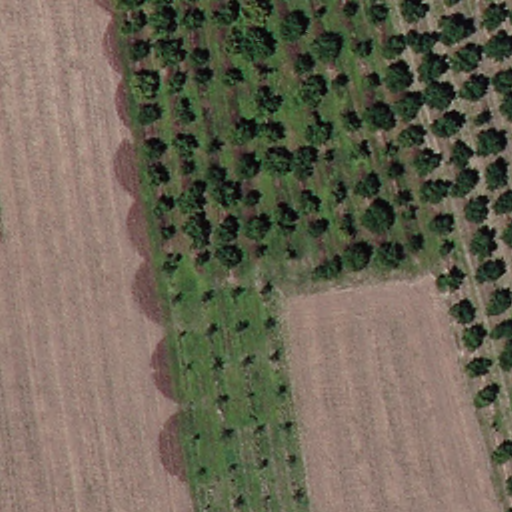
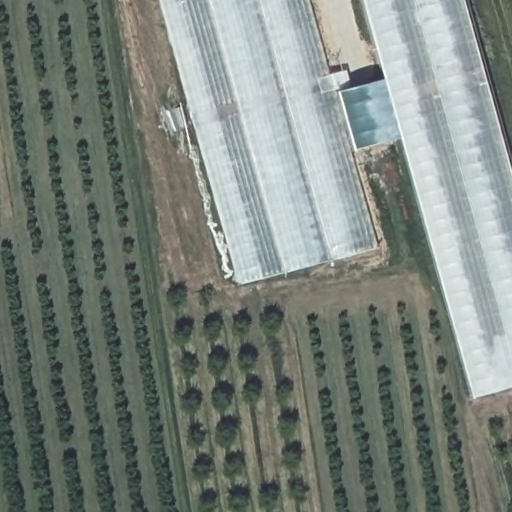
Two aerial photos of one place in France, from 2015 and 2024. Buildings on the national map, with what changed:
new [(237,284),(159,0),(308,0),(377,247),(237,284)]
new [(363,0),(463,0),(512,178),(512,386),(472,397),(363,0)]
new [(337,91),(381,79),(397,137),(353,149),(337,91)]

